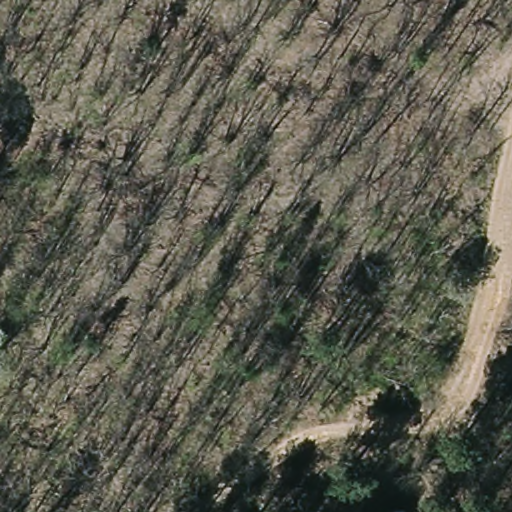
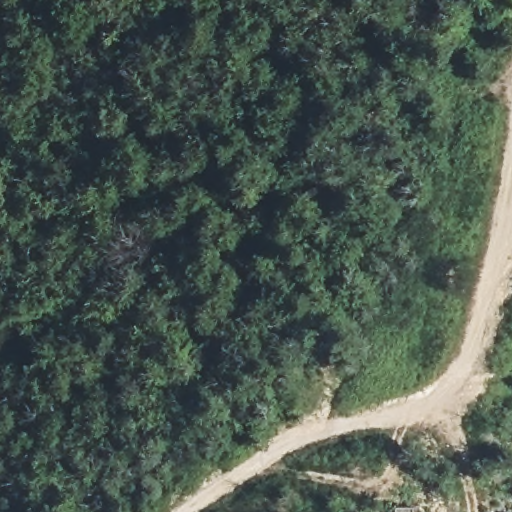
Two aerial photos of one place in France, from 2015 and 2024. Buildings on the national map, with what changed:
unchanged [(386,512),(388,505),(409,511),(409,512),(386,512)]

